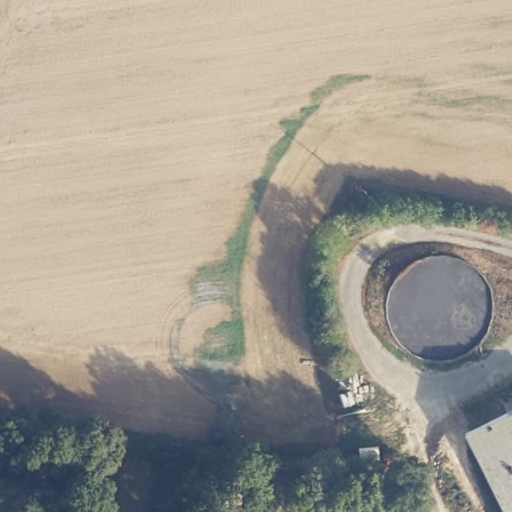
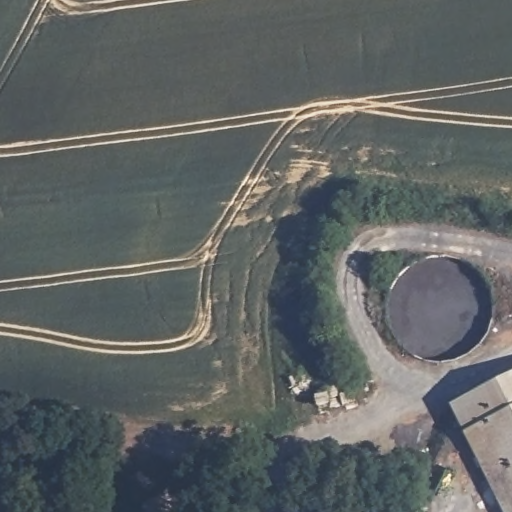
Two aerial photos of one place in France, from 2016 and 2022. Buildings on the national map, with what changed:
new [(512,373),(512,411),(467,434),(451,403),(512,373)]
unchanged [(512,411),(512,512),(506,512),(467,434),(512,411)]

